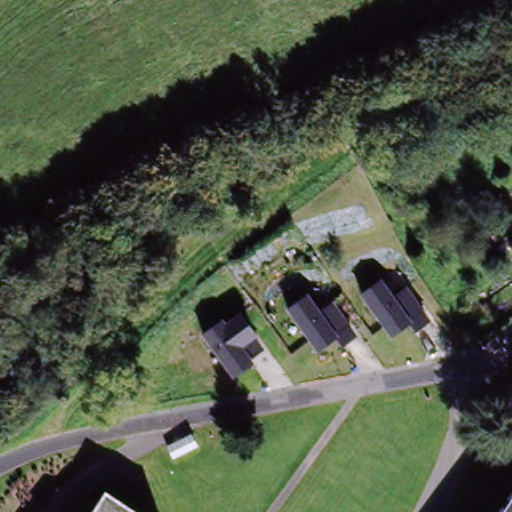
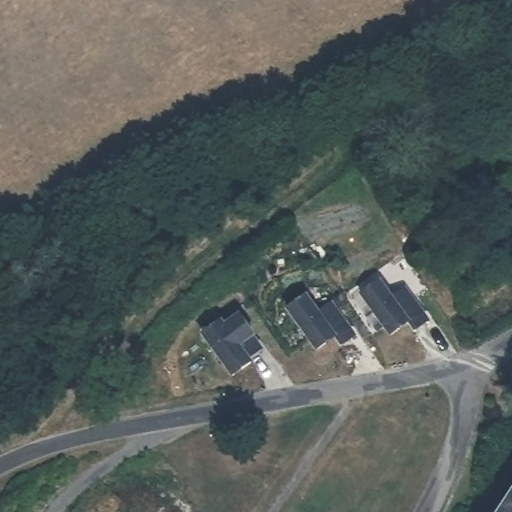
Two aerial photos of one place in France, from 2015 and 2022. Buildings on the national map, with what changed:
unchanged [(386,283),(395,297),(410,292),(431,323),(418,338),(410,329),(393,340),(366,298),(386,283)]
unchanged [(311,299),(320,312),(332,305),(355,338),(342,349),(336,342),(319,355),(291,313),(311,299)]
unchanged [(238,317),(263,352),(252,359),(253,367),(236,382),(206,338),(238,317)]
demolished [(131,512),(92,512),(104,494),(131,512)]
unchanged [(512,512),(502,512),(512,497),(512,512)]

